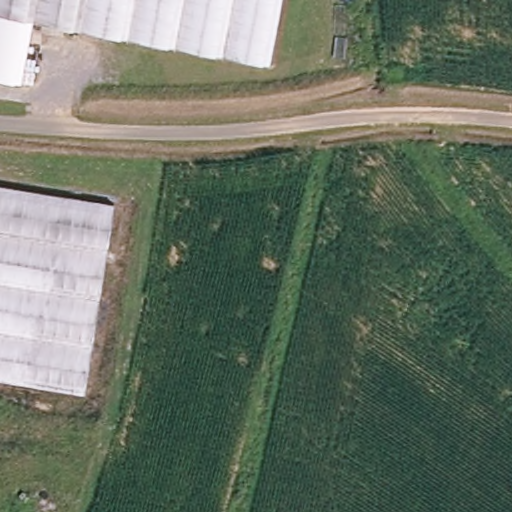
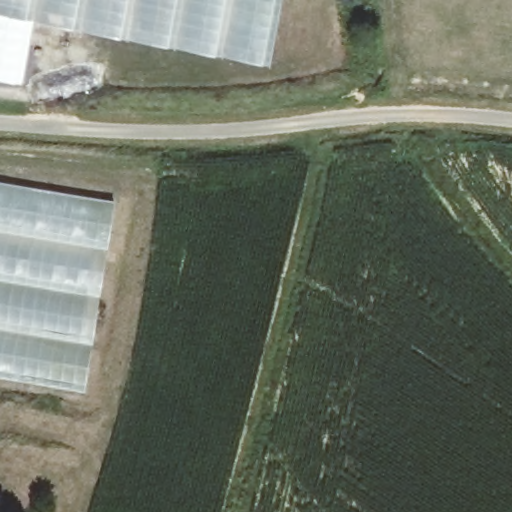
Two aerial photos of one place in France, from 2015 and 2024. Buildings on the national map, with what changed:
unchanged [(280,0),(265,69),(34,19),(20,84),(0,79),(0,0),(280,0)]
unchanged [(111,202),(77,399),(0,386),(0,184),(111,202)]

